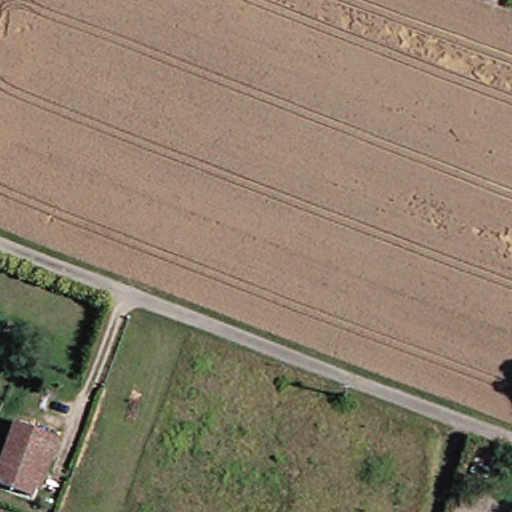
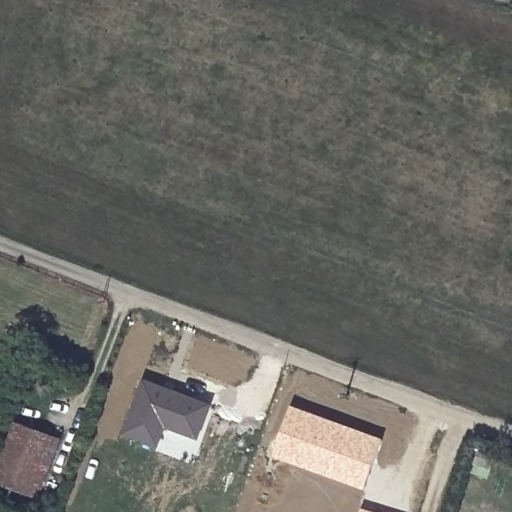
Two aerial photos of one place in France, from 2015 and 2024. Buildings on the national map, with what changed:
new [(199,440),(167,428),(159,449),(124,435),(145,379),(213,404),(199,440)]
new [(365,489),(274,457),(292,403),(384,438),(365,489)]
unchanged [(32,497),(0,485),(0,468),(16,423),(60,438),(54,454),(41,489),(36,488),(32,497)]
new [(378,512),(360,512),(361,507),(378,512)]

